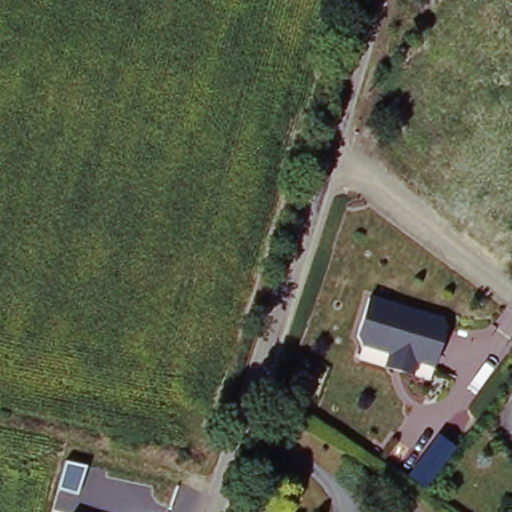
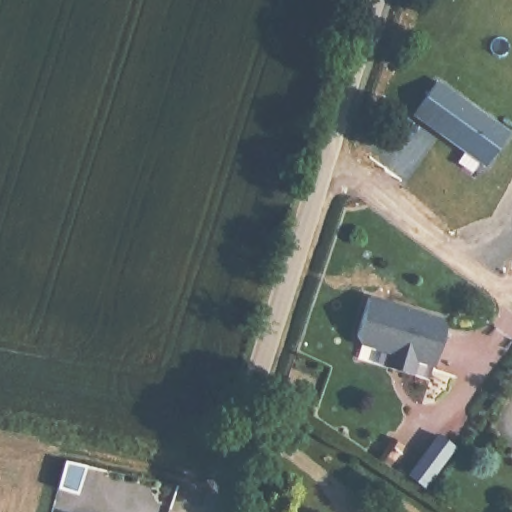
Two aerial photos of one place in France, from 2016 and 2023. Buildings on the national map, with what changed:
new [(509,131),(483,168),(411,116),(437,79),(509,131)]
unchanged [(365,346),(361,338),(371,299),(446,321),(450,328),(438,367),(421,362),(417,377),(390,369),(395,355),(365,346)]
new [(438,436),(455,448),(425,488),(408,476),(438,436)]
new [(65,461),(86,466),(78,494),(57,488),(65,461)]
unchanged [(77,512),(70,512),(71,510),(77,512)]

